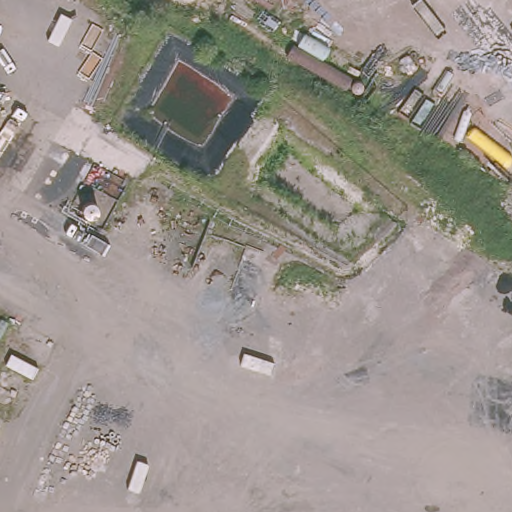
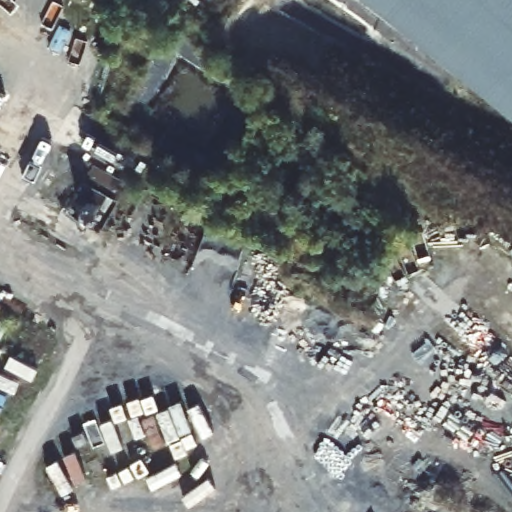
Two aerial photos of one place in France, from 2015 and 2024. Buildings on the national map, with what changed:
new [(393,0),(512,0),(512,96),(393,0)]

